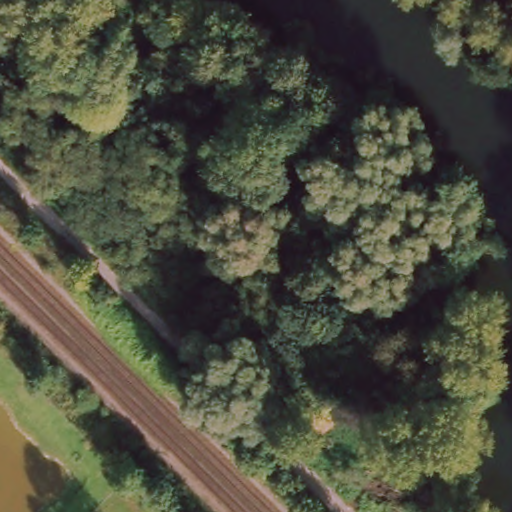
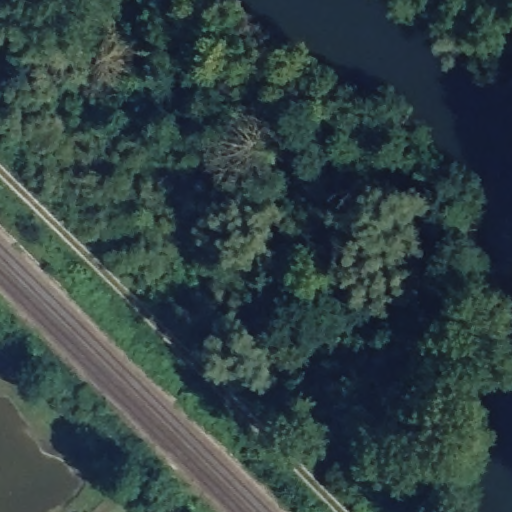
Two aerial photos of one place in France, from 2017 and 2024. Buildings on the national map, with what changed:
[]

